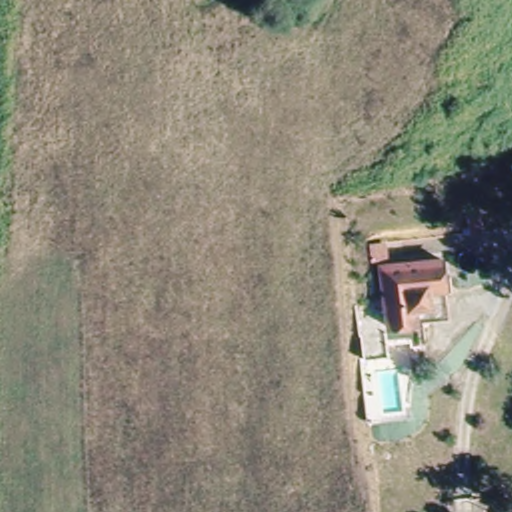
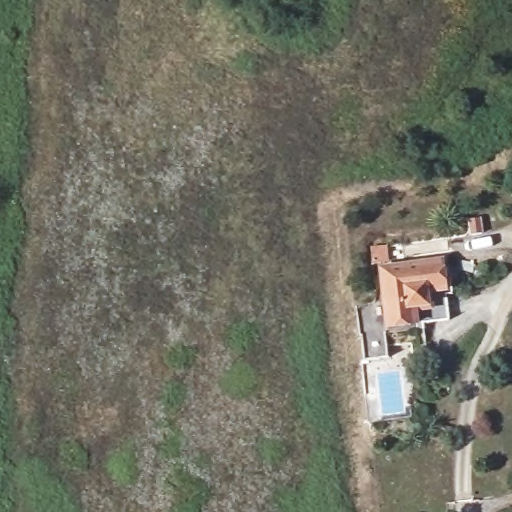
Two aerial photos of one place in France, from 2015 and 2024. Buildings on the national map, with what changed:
unchanged [(445,259),(447,289),(429,292),(431,308),(415,312),(415,331),(388,333),(382,263),(445,259)]

